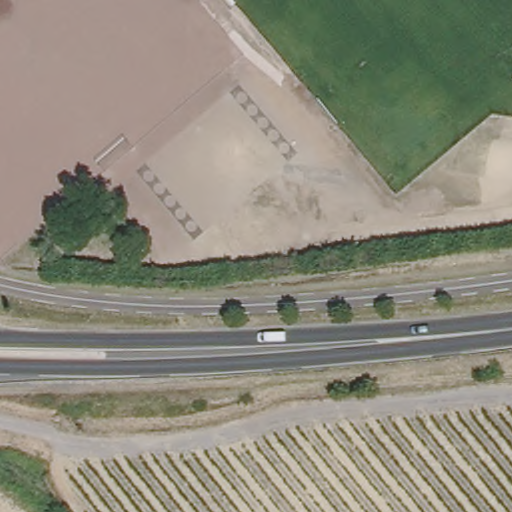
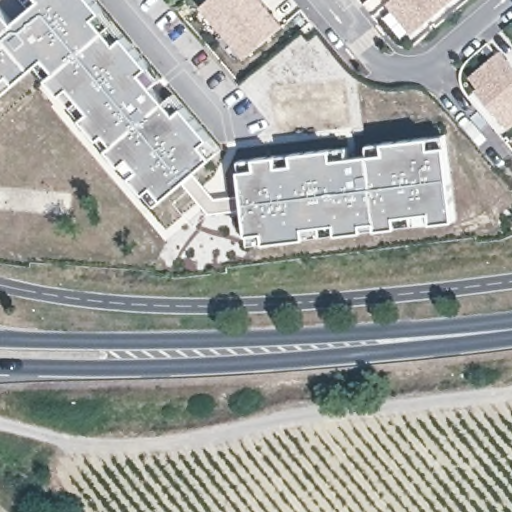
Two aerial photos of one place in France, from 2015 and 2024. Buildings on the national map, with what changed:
new [(14,22),(30,9),(22,0),(93,0),(102,11),(124,36),(150,67),(142,73),(176,114),(165,100),(173,94),(184,106),(210,137),(221,150),(213,157),(164,199),(156,206),(145,193),(132,176),(139,170),(131,176),(121,165),(107,149),(99,139),(82,119),(61,95),(46,78),(35,65),(43,58),(10,86),(0,95),(0,5),(14,22)]
new [(285,27),(246,59),(200,8),(210,0),(263,0),(285,27)]
new [(413,32),(388,2),(391,0),(452,0),(413,32)]
new [(512,126),(509,128),(477,92),(481,88),(470,75),(500,51),(512,65),(512,126)]
new [(161,79),(153,86),(142,73),(150,67),(161,79)]
new [(248,234),(240,170),(239,159),(255,157),(276,155),(291,153),(332,148),(348,146),(349,156),(333,159),(369,155),(368,144),(384,142),(445,134),(455,219),(432,222),(398,226),(378,228),(363,230),(322,235),(290,239),(265,242),(249,244),(248,234)]

